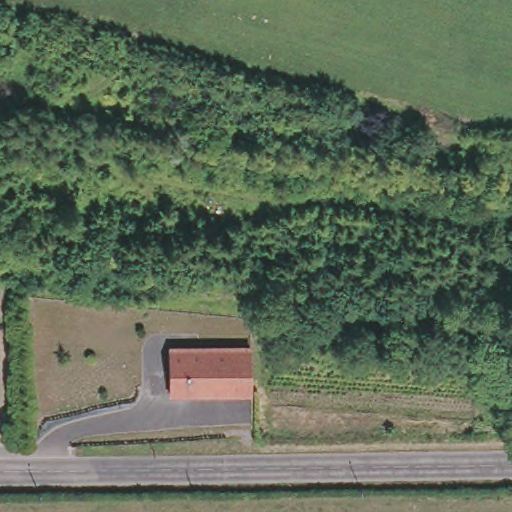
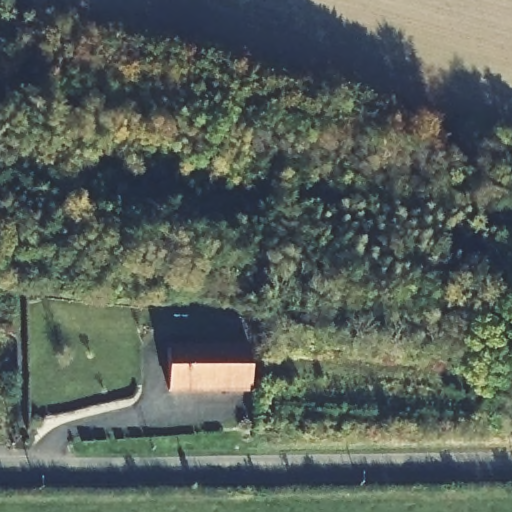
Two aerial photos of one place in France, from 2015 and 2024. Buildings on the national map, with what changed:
unchanged [(252,388),(173,395),(168,353),(168,351),(250,344),(251,360),(252,388)]

